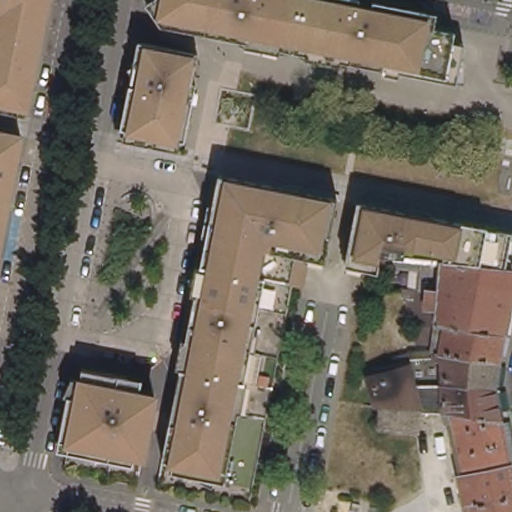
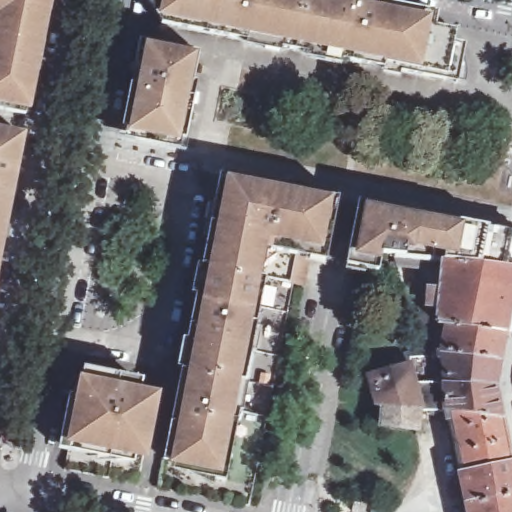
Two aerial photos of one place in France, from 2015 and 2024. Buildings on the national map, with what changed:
unchanged [(39,68),(30,115),(4,111),(0,110),(0,0),(52,0),(41,57),(39,68)]
unchanged [(350,6),(351,1),(376,6),(395,10),(411,14),(426,20),(454,26),(446,69),(445,75),(388,64),(369,60),(181,23),(160,19),(155,9),(156,0),(334,0),(334,2),(350,6)]
unchanged [(192,47),(187,75),(192,75),(180,135),(165,132),(164,136),(130,130),(131,122),(129,122),(130,112),(129,112),(144,37),(192,47)]
unchanged [(19,164),(16,168),(5,225),(0,249),(0,126),(25,131),(19,164)]
unchanged [(333,196),(324,247),(310,245),(305,256),(300,278),(296,277),(295,283),(260,277),(237,388),(222,470),(157,458),(170,382),(202,234),(214,173),(333,196)]
unchanged [(512,236),(512,271),(435,262),(424,261),(395,258),(380,257),(379,275),(362,272),(360,255),(347,254),(357,205),(384,210),(512,236)]
unchanged [(512,271),(512,300),(504,340),(437,329),(414,326),(424,261),(435,262),(512,271)]
unchanged [(504,340),(495,392),(442,385),(434,385),(424,359),(434,361),(437,329),(504,340)]
unchanged [(424,359),(434,385),(445,414),(427,412),(418,411),(419,402),(417,392),(410,366),(407,356),(424,359)]
unchanged [(397,370),(402,369),(410,366),(417,392),(419,402),(418,411),(380,407),(377,407),(370,378),(397,370)]
unchanged [(92,372),(128,380),(127,382),(125,392),(154,398),(149,428),(143,457),(89,447),(78,445),(69,443),(78,388),(81,370),(92,372)]
unchanged [(495,392),(499,420),(445,414),(434,385),(442,385),(495,392)]
unchanged [(499,420),(509,466),(465,475),(455,423),(448,423),(445,414),(499,420)]
unchanged [(512,480),(512,499),(472,506),(465,475),(509,466),(512,480)]
unchanged [(464,508),(472,506),(512,499),(512,512),(464,512),(464,508)]

